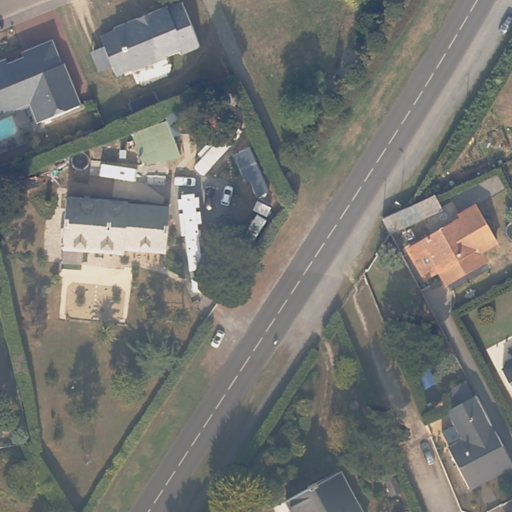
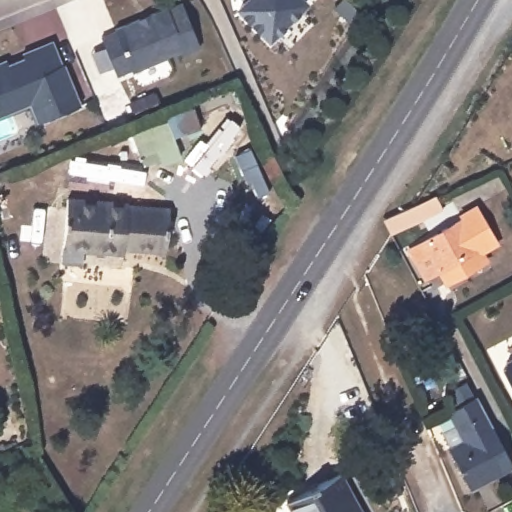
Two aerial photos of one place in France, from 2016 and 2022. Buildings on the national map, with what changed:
new [(308,2),(269,43),(234,7),(241,0),(307,0),(308,2)]
unchanged [(91,53),(104,47),(100,38),(116,31),(115,29),(140,19),(142,23),(153,18),(151,14),(169,6),(169,8),(184,2),(202,47),(183,55),(181,51),(167,57),(168,59),(132,73),(131,71),(117,78),(113,68),(99,74),(91,53)]
unchanged [(24,56),(22,52),(54,39),(64,63),(66,62),(83,104),(42,120),(31,96),(0,109),(0,66),(24,56)]
unchanged [(172,118),(186,152),(147,169),(132,132),(172,118)]
unchanged [(122,203),(168,207),(165,249),(117,246),(117,250),(61,245),(66,195),(122,200),(122,203)]
unchanged [(414,202),(420,216),(390,229),(395,221),(398,216),(405,206),(414,202)]
unchanged [(466,271),(446,282),(439,268),(425,275),(411,245),(463,219),(462,215),(473,210),(479,207),(498,244),(492,247),(482,252),(486,261),(466,271)]
unchanged [(501,368),(504,362),(512,358),(512,391),(501,369),(501,368)]
unchanged [(452,453),(454,452),(445,435),(459,427),(451,413),(480,399),(512,460),(512,470),(473,491),(452,453)]
unchanged [(338,467),(362,512),(293,512),(284,496),(338,467)]

